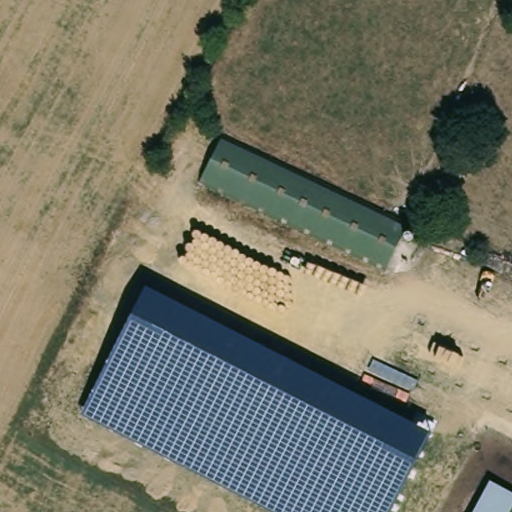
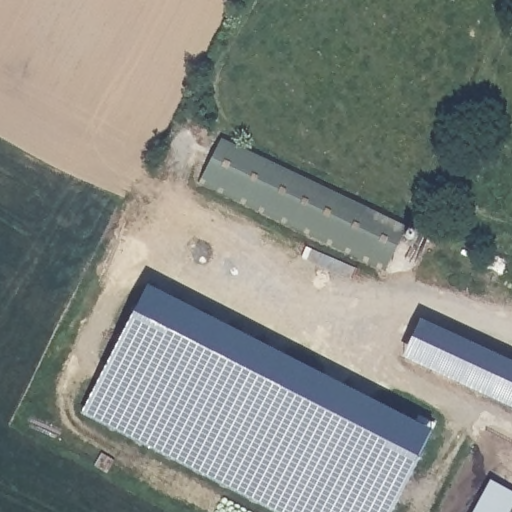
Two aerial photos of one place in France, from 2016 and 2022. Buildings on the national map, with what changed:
unchanged [(227,131),(409,219),(388,262),(206,175),(227,131)]
unchanged [(82,413),(148,288),(431,433),(390,512),(275,512),(82,413)]
new [(512,364),(512,409),(401,357),(420,321),(512,364)]
new [(490,481),(512,493),(512,506),(509,512),(473,512),(490,481)]

